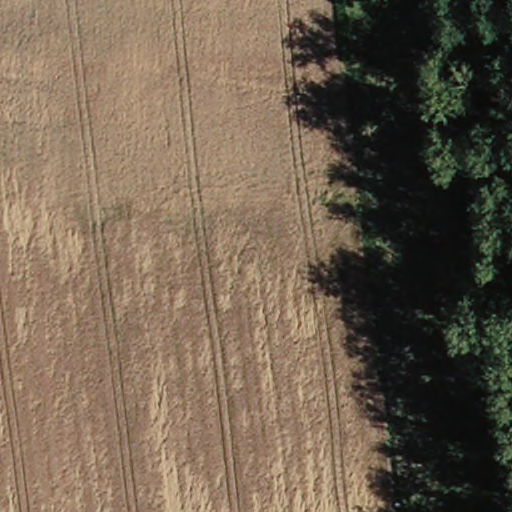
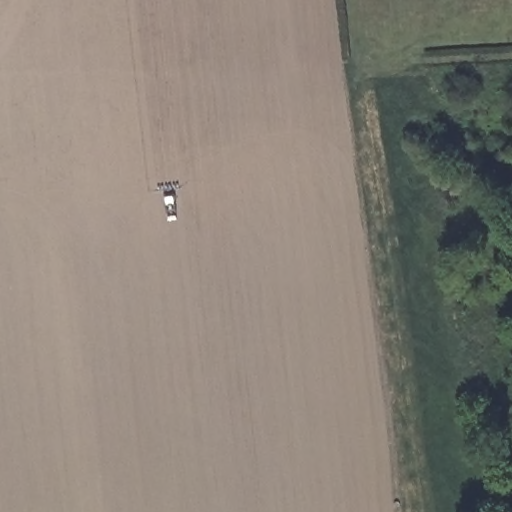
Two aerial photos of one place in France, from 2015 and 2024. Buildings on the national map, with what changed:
[]

